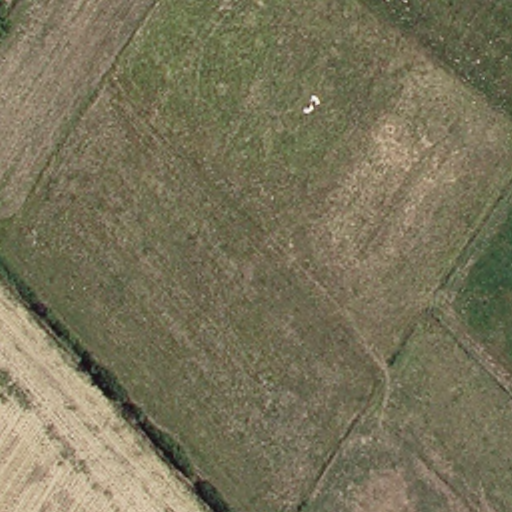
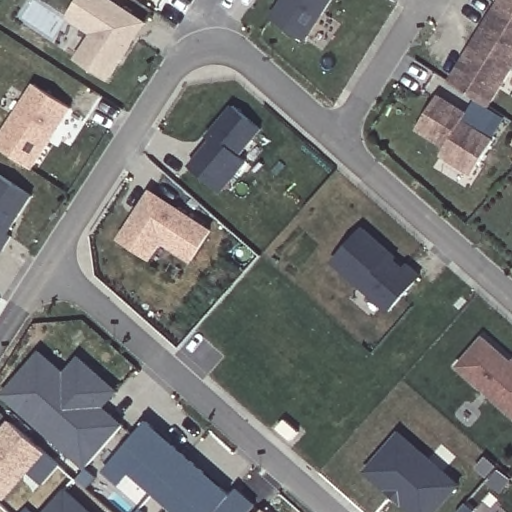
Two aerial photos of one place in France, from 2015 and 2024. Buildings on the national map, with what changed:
new [(78,0),(106,0),(142,23),(105,79),(74,58),(90,34),(66,18),(78,0)]
new [(305,41),(270,19),(283,0),(332,0),(305,41)]
new [(512,13),(498,4),(501,0),(512,0),(512,13)]
new [(512,13),(512,69),(488,107),(448,83),(498,4),(512,13)]
new [(29,170),(0,150),(0,136),(33,85),(69,109),(51,136),(47,143),(29,170)]
new [(436,98),(465,116),(460,123),(492,143),(471,177),(439,157),(444,149),(415,131),(436,98)]
new [(208,137),(213,131),(234,106),(262,129),(240,155),(247,161),(221,192),(191,166),(212,140),(208,137)]
new [(32,196),(8,233),(12,236),(2,251),(0,249),(0,174),(32,196)]
new [(147,194),(206,232),(187,261),(157,242),(146,259),(117,240),(147,194)]
new [(390,252),(396,257),(393,260),(403,270),(407,265),(420,275),(389,311),(333,263),(362,228),(390,252)]
new [(512,362),(512,415),(458,367),(483,338),(511,362),(512,362)]
new [(0,394),(38,352),(62,373),(76,357),(114,390),(100,407),(121,424),(83,467),(70,455),(32,422),(0,394)]
new [(9,420),(62,465),(44,485),(29,473),(5,500),(0,495),(0,431),(9,420)]
new [(130,473),(120,485),(104,471),(114,459),(146,422),(186,457),(190,461),(230,496),(217,512),(176,512),(159,497),(154,494),(130,473)]
new [(458,486),(435,512),(410,512),(365,472),(399,434),(458,486)]
new [(93,512),(45,512),(67,488),(93,512)]

